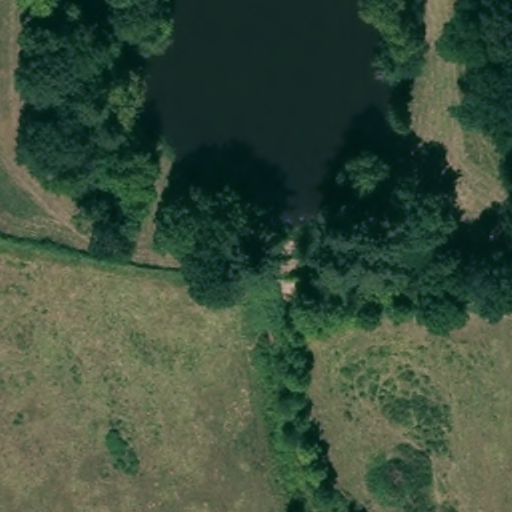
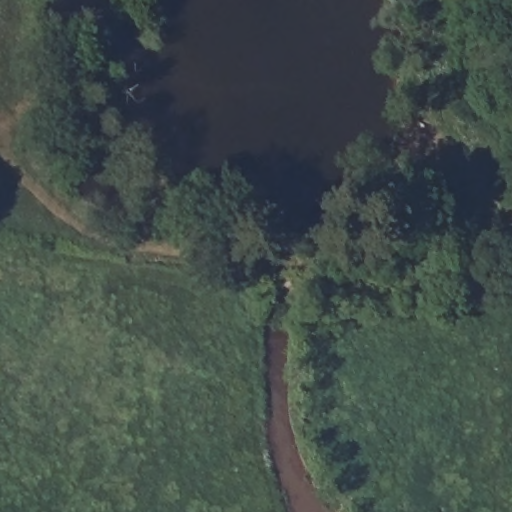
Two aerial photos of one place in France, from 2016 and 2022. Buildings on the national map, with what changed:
unchanged [(407,259),(412,256),(417,255),(422,256),(427,260),(430,265),(430,271),(427,276),(423,280),(418,282),(412,281),(407,279),(404,274),(403,269),(403,263),(407,259)]

